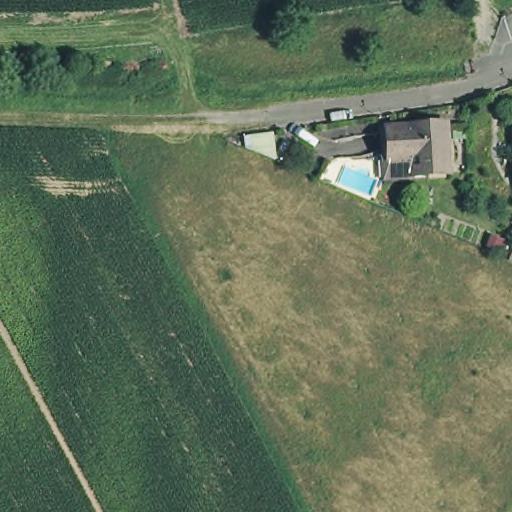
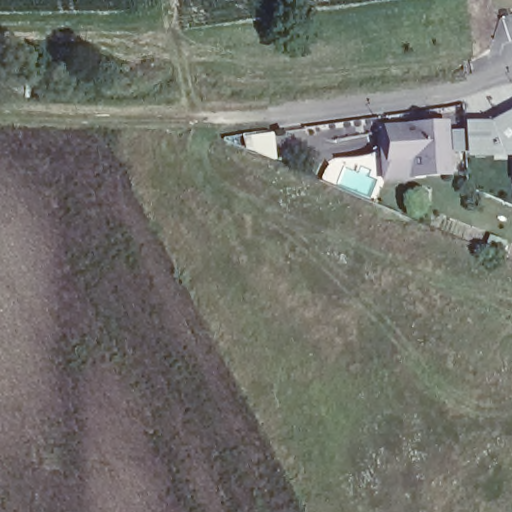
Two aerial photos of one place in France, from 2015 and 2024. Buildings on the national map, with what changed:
new [(466,121),(490,120),(512,109),(512,155),(467,157),(466,121)]
unchanged [(420,166),(419,156),(393,156),(390,127),(405,126),(450,122),(454,165),(454,171),(440,173),(420,175),(420,166)]
unchanged [(227,140),(277,138),(279,164),(227,140)]

